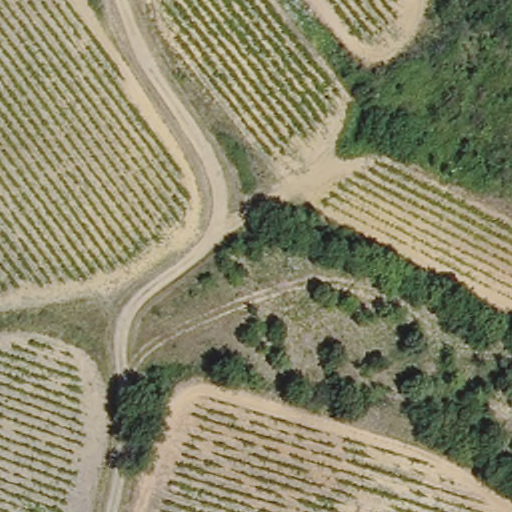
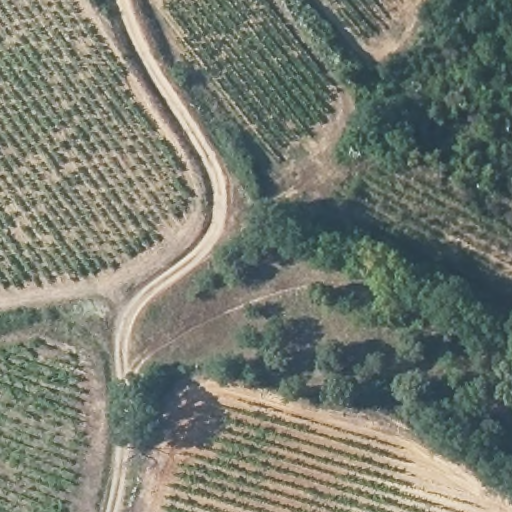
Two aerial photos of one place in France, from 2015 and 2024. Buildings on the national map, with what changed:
unchanged [(397,106),(414,119),(405,137),(389,124),(397,106)]

